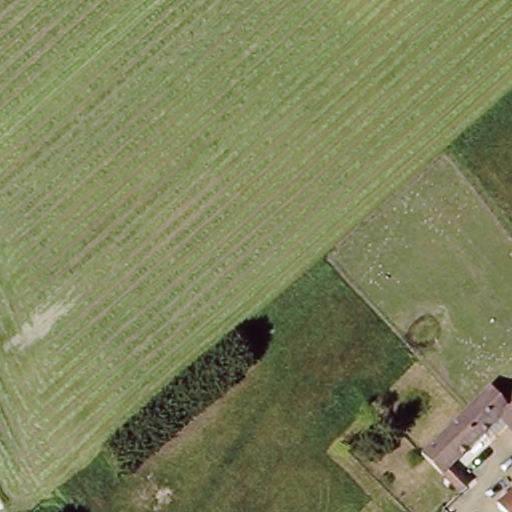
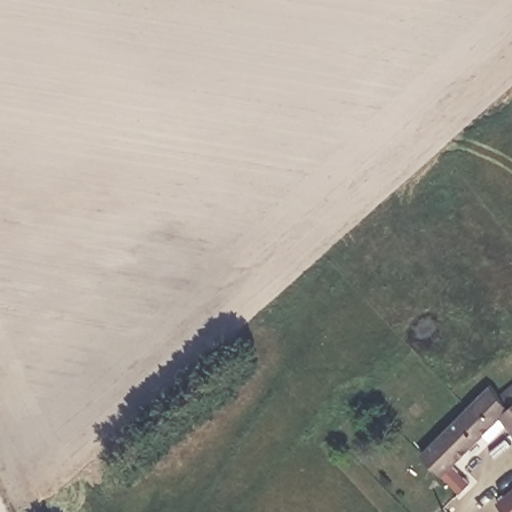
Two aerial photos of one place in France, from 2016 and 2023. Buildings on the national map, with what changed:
unchanged [(504,424),(457,469),(473,487),(465,495),(427,458),(497,389),(507,398),(512,394),(512,433),(504,424)]

